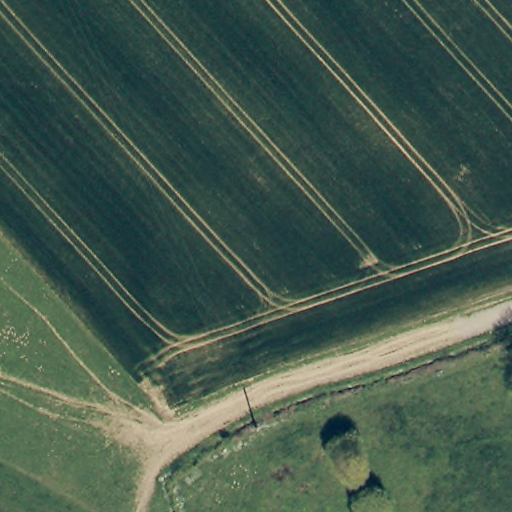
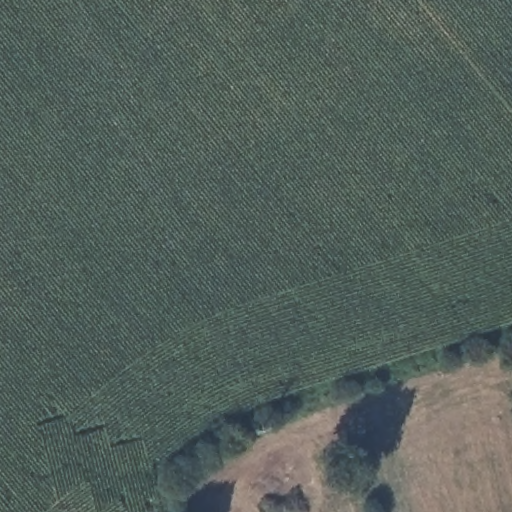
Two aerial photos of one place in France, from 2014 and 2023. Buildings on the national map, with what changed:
[]

